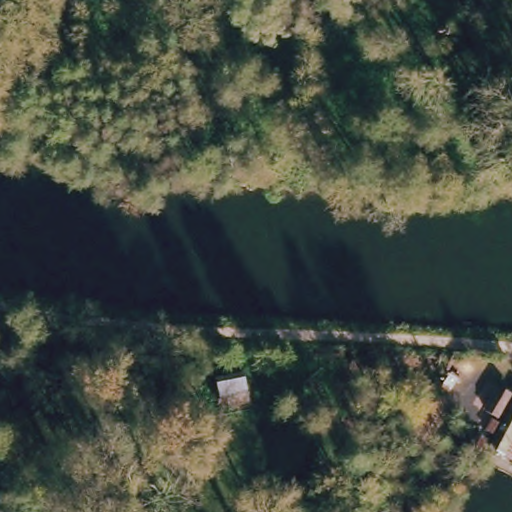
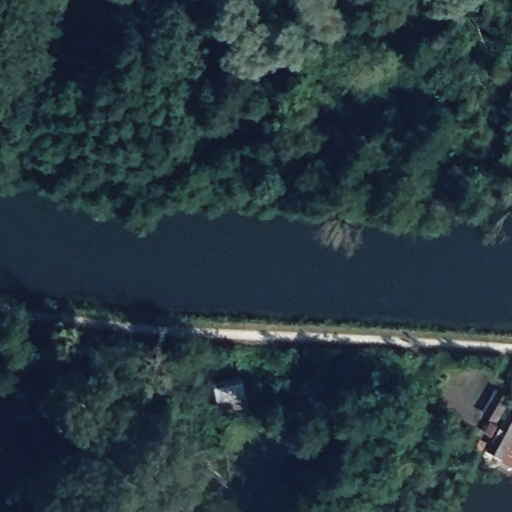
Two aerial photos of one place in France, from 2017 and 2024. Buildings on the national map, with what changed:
unchanged [(495,452),(504,433),(476,417),(490,391),(512,405),(512,461),(495,452)]

